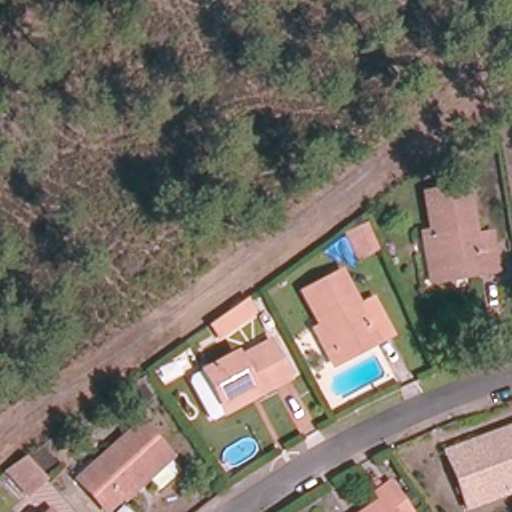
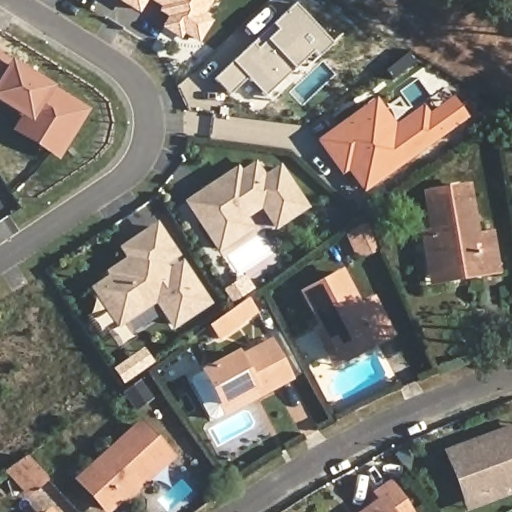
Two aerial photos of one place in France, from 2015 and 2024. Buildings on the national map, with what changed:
new [(128,0),(146,0),(141,8),(128,0)]
new [(211,0),(202,15),(211,20),(200,38),(185,28),(182,33),(168,24),(174,15),(165,9),(168,4),(161,0),(211,0)]
new [(306,0),(339,36),(329,44),(268,103),(245,80),(227,96),(212,80),(292,5),(298,0),(306,0)]
new [(89,109),(58,160),(11,131),(22,119),(0,105),(0,54),(89,109)]
new [(355,172),(364,166),(359,159),(346,168),(326,140),(357,118),(377,103),(379,107),(396,130),(425,110),(430,117),(439,110),(454,100),(465,116),(450,127),(366,187),(355,172)]
new [(277,225),(263,204),(228,227),(235,238),(220,248),(202,222),(188,201),(217,182),(238,168),(242,173),(256,163),(265,177),(281,166),(307,206),(277,225)]
unchanged [(475,237),(491,234),(497,271),(481,274),(479,261),(436,268),(431,233),(424,194),(466,187),(475,237)]
new [(366,223),(377,250),(360,257),(355,259),(344,232),(349,230),(366,223)]
new [(108,305),(96,287),(114,275),(111,271),(124,263),(131,258),(137,266),(124,247),(156,226),(175,253),(161,262),(168,273),(182,264),(207,301),(174,323),(156,297),(125,318),(119,321),(108,305)]
unchanged [(321,327),(303,293),(341,273),(359,307),(373,300),(391,334),(377,341),(372,332),(334,352),(321,327)]
unchanged [(248,297),(256,309),(224,332),(215,320),(248,297)]
unchanged [(219,415),(196,373),(206,367),(240,348),(243,353),(274,336),(295,374),(263,391),(229,410),(219,415)]
unchanged [(79,480),(139,426),(165,455),(106,509),(79,480)]
unchanged [(512,431),(512,485),(481,497),(463,504),(444,457),(462,450),(512,431)]
unchanged [(24,457),(44,479),(27,494),(6,470),(24,457)]
unchanged [(379,500),(374,493),(388,483),(409,512),(362,512),(379,500)]

